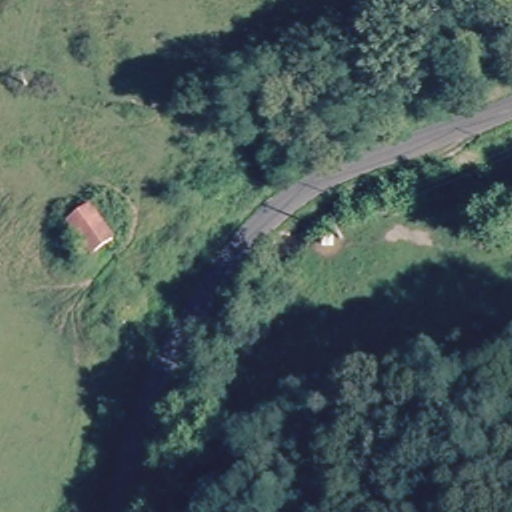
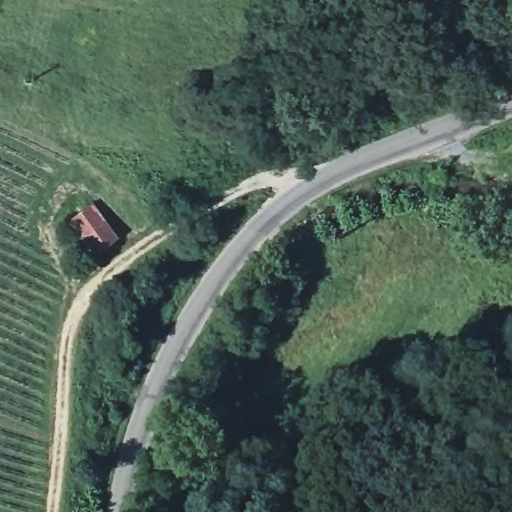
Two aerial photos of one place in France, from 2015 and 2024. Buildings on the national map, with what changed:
unchanged [(87,202),(114,241),(89,258),(62,219),(87,202)]

